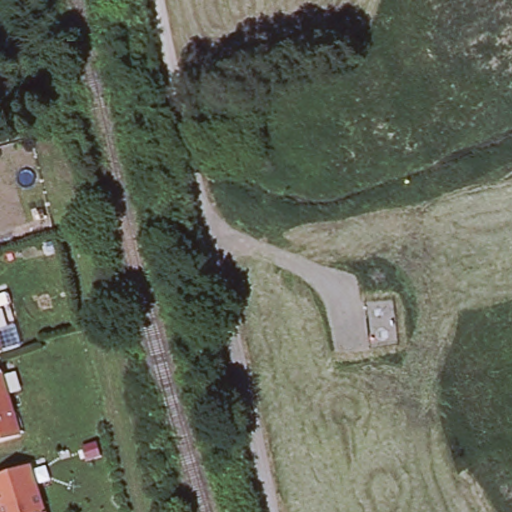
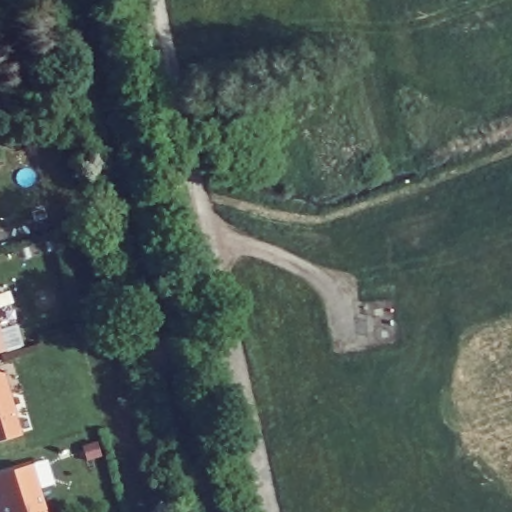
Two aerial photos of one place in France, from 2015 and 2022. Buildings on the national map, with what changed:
unchanged [(0,355),(0,340),(4,353),(0,355)]
unchanged [(0,371),(1,371),(12,413),(20,436),(0,442),(0,371)]
unchanged [(43,511),(43,512),(0,512),(0,476),(30,466),(43,511)]

